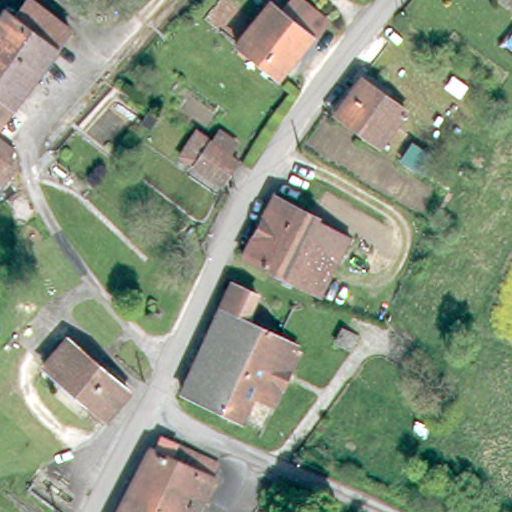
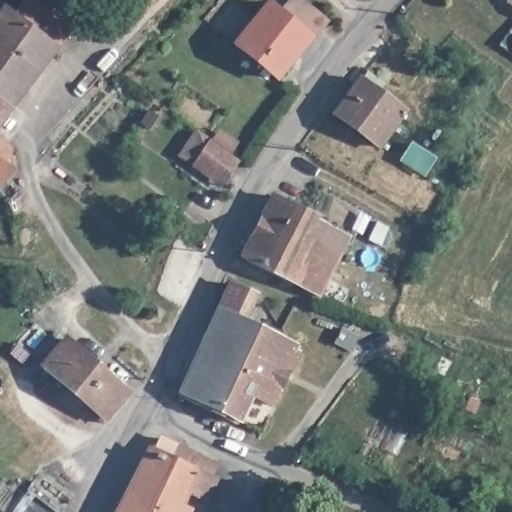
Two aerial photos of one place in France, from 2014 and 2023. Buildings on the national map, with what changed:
unchanged [(0,126),(0,15),(1,15),(6,8),(16,16),(29,0),(35,0),(74,29),(0,126)]
unchanged [(297,0),(306,7),(311,0),(319,0),(336,13),(338,14),(329,26),(284,82),(208,21),(225,0),(237,0),(241,3),(244,0),(297,0)]
unchanged [(379,150),(334,117),(359,82),(404,114),(379,150)]
unchanged [(211,173),(183,154),(201,130),(229,150),(241,158),(227,178),(224,182),(211,173)]
unchanged [(17,147),(14,173),(10,177),(9,176),(2,172),(0,171),(0,134),(17,147)]
unchanged [(331,280),(328,278),(318,299),(291,286),(289,291),(282,288),(284,283),(241,261),(271,199),(317,222),(316,223),(326,228),(341,236),(349,240),(331,280)]
unchanged [(255,294),(243,320),(277,334),(276,338),(298,350),(274,404),(251,393),(238,419),(180,390),(231,283),(255,294)]
unchanged [(354,347),(341,340),(346,329),(359,335),(354,347)]
unchanged [(88,397),(43,359),(65,334),(128,388),(103,419),(83,402),(88,397)]
unchanged [(148,454),(151,456),(158,441),(174,448),(213,466),(208,479),(214,482),(204,503),(186,494),(178,511),(179,512),(119,512),(148,454)]

